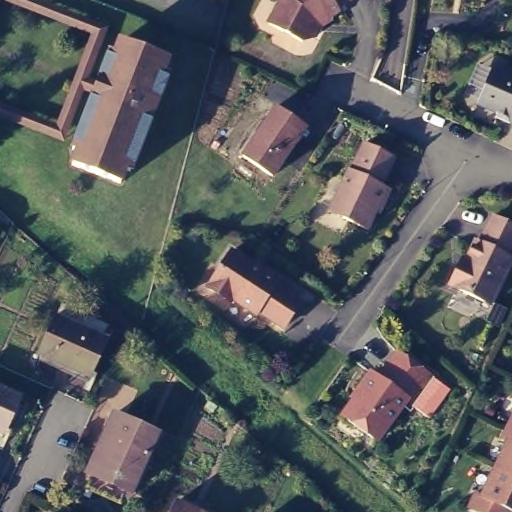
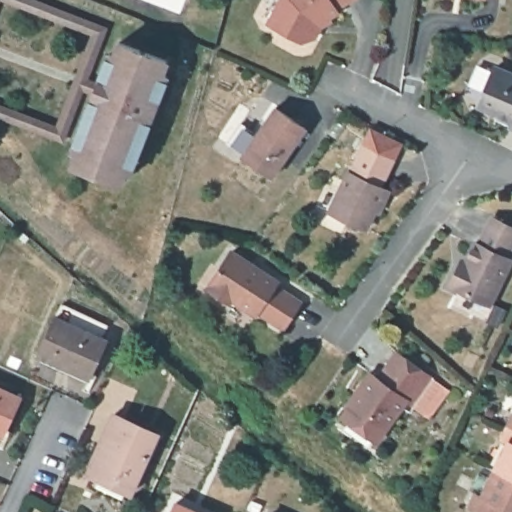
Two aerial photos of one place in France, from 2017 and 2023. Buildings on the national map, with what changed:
unchanged [(90,82),(102,86),(97,99),(85,95),(66,145),(0,119),(0,108),(60,132),(96,38),(3,2),(0,10),(0,0),(26,0),(109,32),(90,82)]
unchanged [(331,9),(334,11),(314,24),(316,27),(309,39),(298,42),(264,25),(277,0),(345,0),(331,9)]
unchanged [(486,4),(466,0),(487,0),(486,4)]
unchanged [(171,65),(165,78),(170,80),(158,109),(153,120),(154,121),(133,176),(128,175),(123,188),(75,169),(80,156),(75,154),(97,99),(102,86),(113,57),(118,60),(123,46),(171,65)]
unchanged [(493,114),(479,108),(476,100),(490,67),(512,77),(512,129),(509,127),(490,120),(493,114)]
unchanged [(271,107),(301,128),(268,177),(238,157),(271,107)]
unchanged [(380,192),(385,195),(366,234),(330,217),(349,177),(351,178),(364,151),(393,165),(380,192)]
unchanged [(467,261),(476,242),(480,244),(493,217),(512,227),(512,246),(507,257),(511,260),(489,303),(451,285),(459,267),(463,260),(467,261)]
unchanged [(252,266),(251,267),(261,273),(261,272),(278,283),(275,287),(301,303),(284,328),(259,312),(257,316),(233,300),(231,303),(208,289),(231,252),(252,266)]
unchanged [(60,309),(106,331),(101,342),(105,343),(89,377),(85,375),(83,381),(36,360),(60,309)]
unchanged [(426,381),(407,408),(402,405),(373,446),(339,421),(369,379),(374,383),(393,357),(426,381)]
unchanged [(4,428),(0,427),(0,385),(18,392),(4,428)]
unchanged [(129,493),(94,477),(96,471),(88,467),(94,452),(97,453),(105,437),(102,435),(111,413),(156,433),(129,493)]
unchanged [(509,427),(512,420),(512,429),(509,427)]
unchanged [(494,470),(508,443),(502,441),(509,427),(512,429),(512,478),(494,470)]
unchanged [(477,494),(482,497),(494,470),(512,478),(512,512),(479,512),(470,508),(477,494)]
unchanged [(164,512),(168,502),(191,512),(164,512)]

